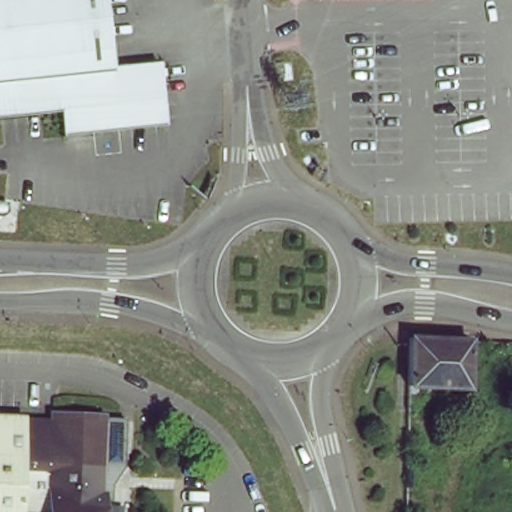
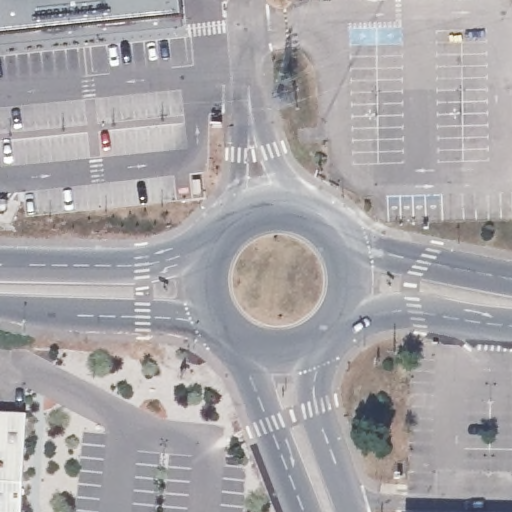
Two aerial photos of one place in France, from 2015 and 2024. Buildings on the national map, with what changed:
new [(179,19),(181,30),(0,47),(0,0),(177,0),(179,19)]
demolished [(65,106),(0,112),(0,0),(104,0),(113,72),(160,70),(167,126),(84,134),(80,105),(65,106)]
demolished [(468,393),(410,392),(412,345),(413,345),(471,347),(468,393)]
demolished [(55,433),(55,422),(125,426),(125,469),(109,468),(109,485),(102,485),(101,512),(30,512),(30,495),(21,495),(23,432),(55,433)]
unchanged [(19,512),(0,512),(0,426),(24,427),(23,432),(21,495),(19,512)]

